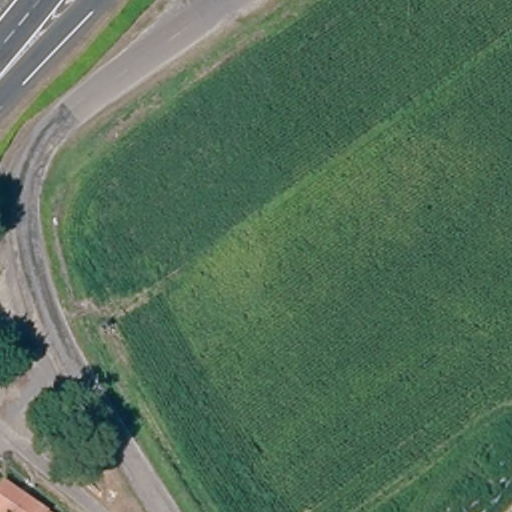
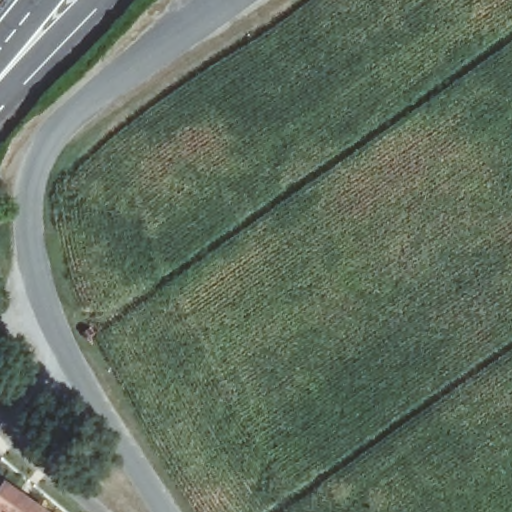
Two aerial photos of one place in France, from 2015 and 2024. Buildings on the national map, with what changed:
unchanged [(42,512),(0,512),(0,494),(5,486),(42,512)]

